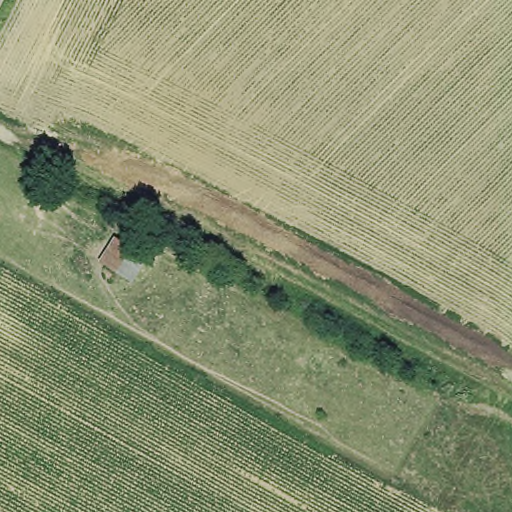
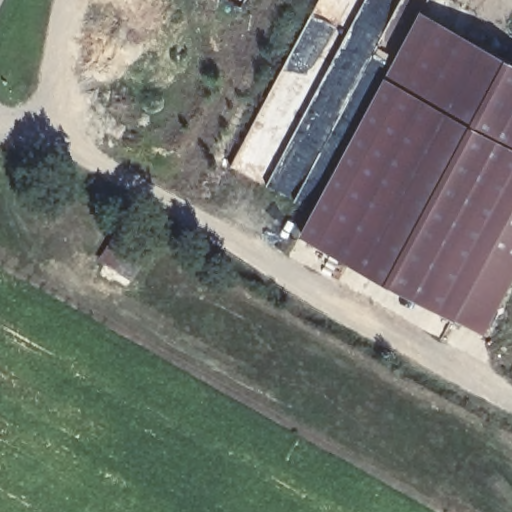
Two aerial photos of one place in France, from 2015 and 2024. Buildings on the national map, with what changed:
new [(484,334),(300,235),(423,12),(512,60),(512,282),(484,334)]
unchanged [(109,237),(142,256),(127,281),(98,263),(109,237)]

